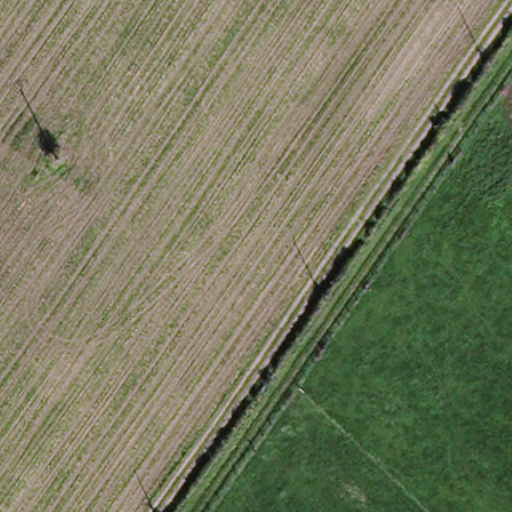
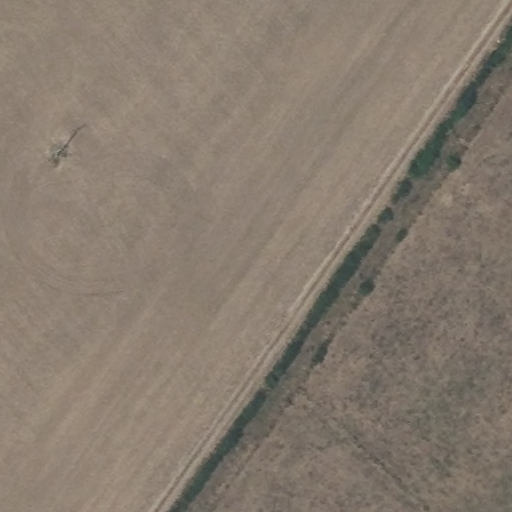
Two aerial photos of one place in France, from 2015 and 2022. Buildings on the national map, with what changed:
[]

